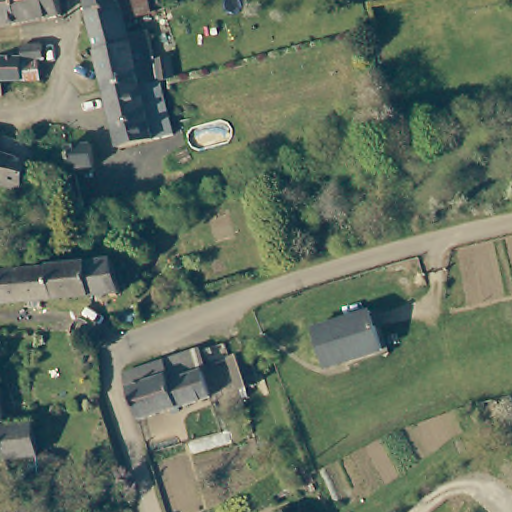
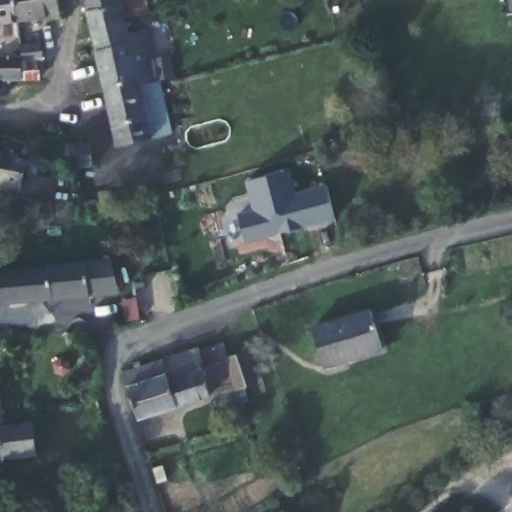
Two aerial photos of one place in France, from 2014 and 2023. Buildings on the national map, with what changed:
unchanged [(0,0),(15,0),(15,3),(16,19),(0,21),(0,0)]
unchanged [(16,19),(15,3),(15,0),(58,0),(60,15),(16,19)]
unchanged [(89,0),(126,0),(128,7),(91,14),(89,0)]
unchanged [(178,77),(161,82),(143,87),(129,90),(108,94),(91,14),(128,7),(130,23),(131,32),(161,26),(166,47),(154,50),(155,56),(173,52),(178,77)]
unchanged [(5,62),(23,62),(24,46),(45,44),(46,61),(42,62),(41,81),(35,81),(21,80),(6,80),(4,79),(5,62)]
unchanged [(154,140),(118,147),(108,94),(129,90),(143,87),(150,119),(154,140)]
unchanged [(71,168),(71,148),(96,145),(99,165),(83,167),(71,168)]
unchanged [(0,155),(3,155),(27,161),(26,164),(20,193),(0,189),(0,155)]
new [(288,170),(294,193),(326,185),(336,220),(303,229),(302,225),(276,232),(278,237),(246,245),(238,214),(254,210),(245,181),(288,170)]
unchanged [(0,308),(0,273),(81,263),(100,261),(104,261),(106,280),(108,295),(84,298),(46,302),(41,303),(0,308)]
unchanged [(369,304),(384,342),(328,365),(313,325),(369,304)]
unchanged [(228,357),(250,349),(260,386),(236,394),(228,357)]
unchanged [(187,368),(204,361),(214,385),(180,397),(164,358),(181,352),(187,368)]
unchanged [(125,367),(126,366),(161,353),(164,358),(180,397),(143,411),(125,367)]
unchanged [(0,384),(3,383),(6,399),(8,411),(10,417),(2,419),(0,419),(0,384)]
unchanged [(6,438),(4,426),(11,424),(39,418),(45,450),(36,451),(9,456),(6,438)]
unchanged [(283,504),(289,512),(273,512),(283,504)]

